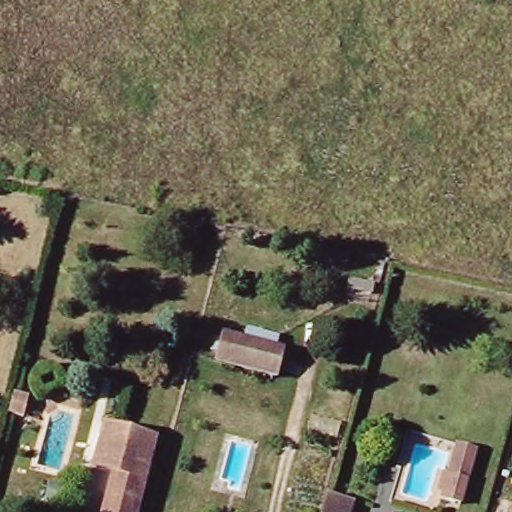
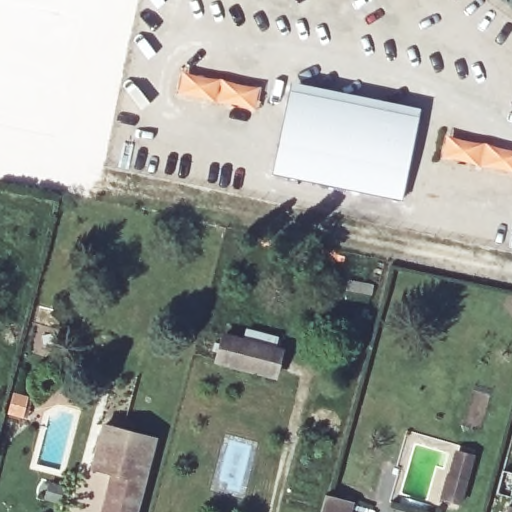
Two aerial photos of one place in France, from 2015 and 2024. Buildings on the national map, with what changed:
new [(230,89),(228,104),(175,93),(179,73),(259,87),(254,110),(243,94),(230,89)]
new [(292,82),(421,109),(402,200),(273,176),(292,82)]
new [(472,160),(468,162),(447,156),(446,135),(494,146),(493,151),(512,155),(512,171),(478,166),(472,160)]
unchanged [(270,375),(210,358),(217,330),(278,345),(270,375)]
unchanged [(93,464),(103,424),(152,436),(137,512),(104,512),(114,468),(93,464)]
unchanged [(434,496),(441,469),(448,470),(454,441),(476,448),(462,504),(434,496)]
unchanged [(352,502),(350,512),(321,512),(325,496),(352,502)]
unchanged [(512,506),(512,512),(507,512),(509,505),(512,506)]

